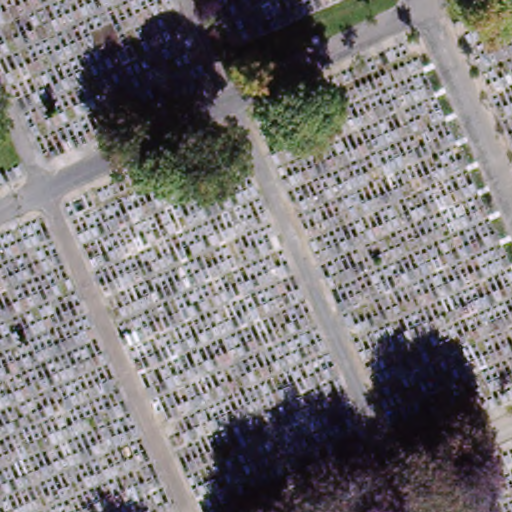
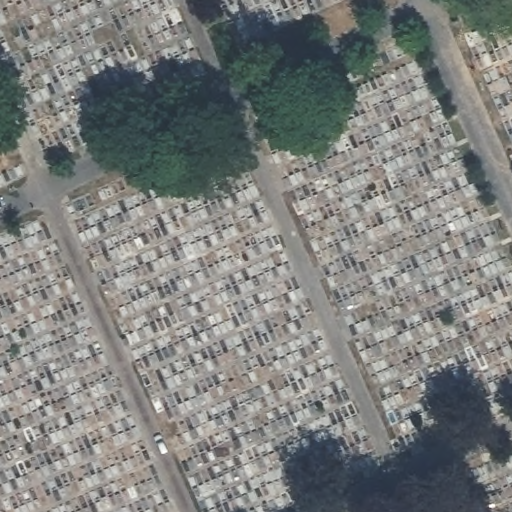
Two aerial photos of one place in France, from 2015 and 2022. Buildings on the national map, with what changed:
[]

